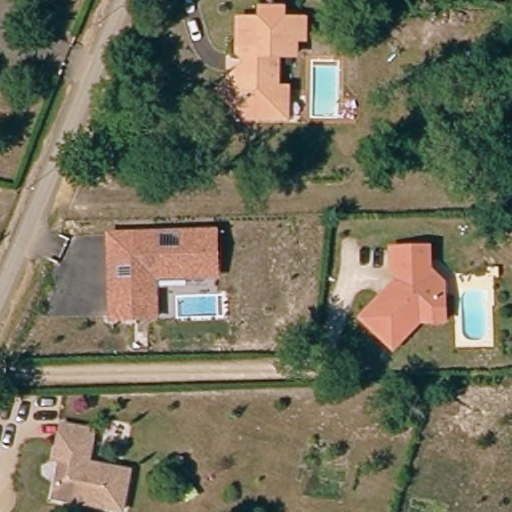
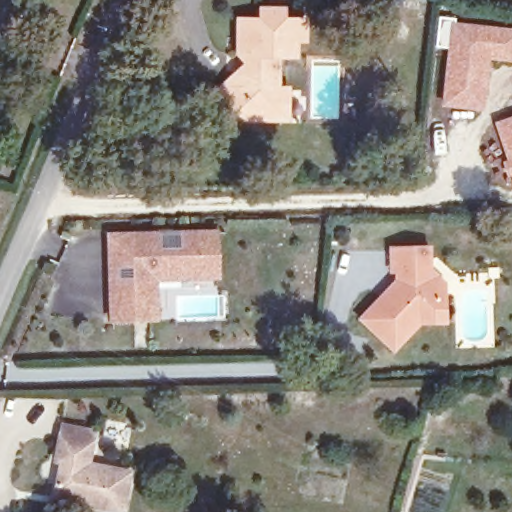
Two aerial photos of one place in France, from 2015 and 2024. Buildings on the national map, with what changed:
new [(438,16),(512,27),(512,61),(492,60),(485,112),(440,107),(446,49),(434,47),(438,16)]
unchanged [(228,91),(242,77),(249,77),(250,63),(238,62),(240,27),(262,29),(262,17),(283,17),(283,29),(305,30),(304,50),(295,50),(295,65),(277,64),(275,98),(282,99),(281,129),(247,127),(220,99),(228,91)]
new [(512,116),(512,190),(501,160),(505,159),(493,122),(512,116)]
unchanged [(106,231),(219,227),(221,281),(159,281),(159,321),(107,322),(106,231)]
unchanged [(418,323),(392,351),(360,320),(380,299),(396,282),(396,272),(391,272),(390,250),(427,249),(427,271),(442,284),(442,297),(443,322),(418,323)]
unchanged [(133,476),(126,512),(113,512),(58,501),(66,465),(59,464),(64,443),(66,428),(97,435),(95,449),(91,467),(133,476)]

